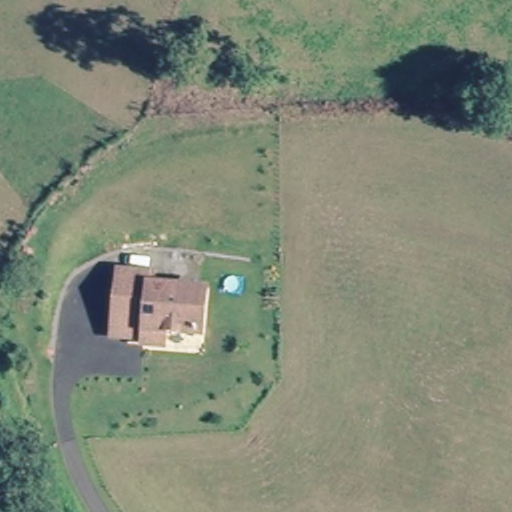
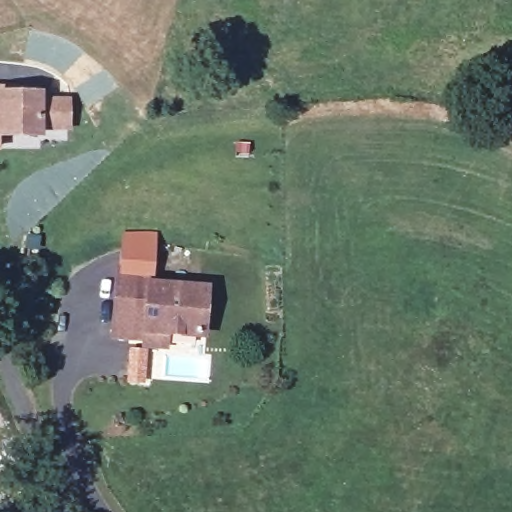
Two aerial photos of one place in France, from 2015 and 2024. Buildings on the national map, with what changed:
new [(43,131),(43,138),(0,138),(0,90),(42,90),(42,97),(72,97),(71,130),(43,131)]
new [(156,233),(152,271),(120,268),(124,232),(156,233)]
unchanged [(151,283),(197,287),(205,288),(202,314),(200,333),(166,330),(165,344),(144,343),(144,338),(113,334),(120,268),(152,271),(151,283)]

